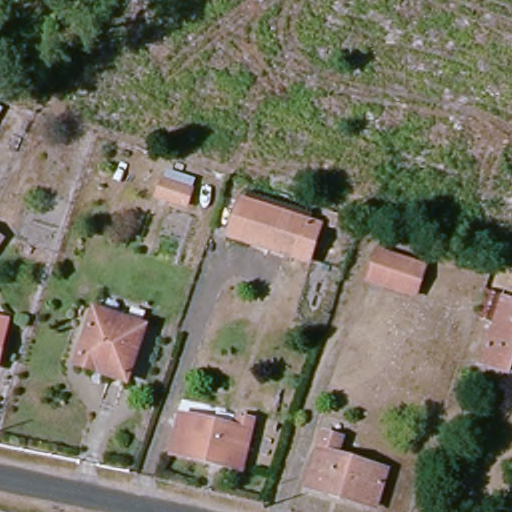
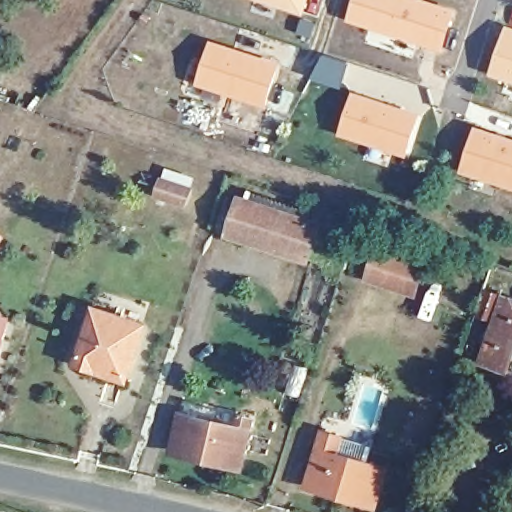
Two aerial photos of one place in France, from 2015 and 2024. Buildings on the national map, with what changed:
new [(306,17),(252,0),(311,0),(306,17)]
new [(457,11),(442,54),(347,23),(354,0),(424,0),(457,11)]
new [(507,26),(512,28),(512,83),(490,76),(507,26)]
new [(281,62),(267,108),(197,87),(212,41),(281,62)]
new [(421,114),(407,157),(340,136),(354,92),(421,114)]
new [(512,139),(512,191),(461,174),(476,127),(512,139)]
unchanged [(310,226),(300,259),(232,236),(242,202),(310,226)]
unchanged [(411,297),(400,292),(363,279),(374,247),(411,260),(422,264),(411,297)]
unchanged [(512,304),(512,326),(497,376),(476,368),(498,298),(512,304)]
unchanged [(140,325),(124,381),(73,363),(91,308),(140,325)]
unchanged [(0,347),(0,339),(2,339),(0,347)]
unchanged [(227,431),(232,418),(247,423),(233,471),(167,453),(180,416),(227,431)]
unchanged [(337,443),(333,456),(385,472),(373,509),(304,488),(321,437),(337,443)]

